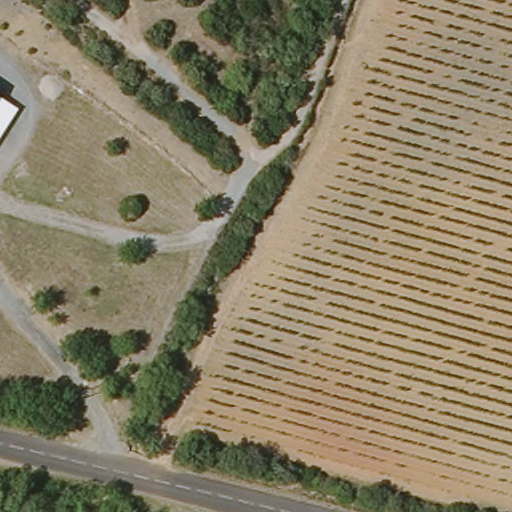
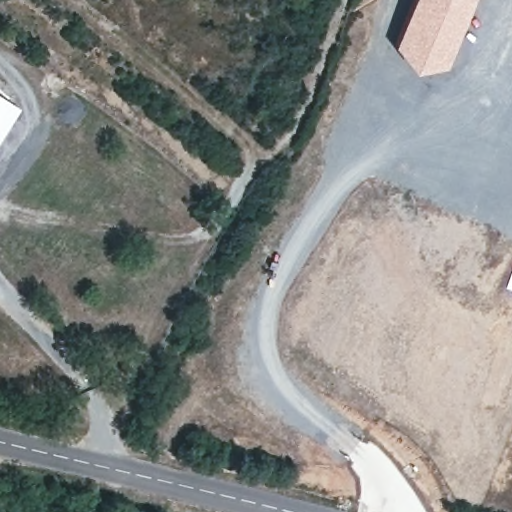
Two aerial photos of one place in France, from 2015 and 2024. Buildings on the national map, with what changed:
new [(470,0),(443,66),(411,71),(391,45),(409,0),(470,0)]
unchanged [(0,132),(0,99),(15,109),(0,132)]

